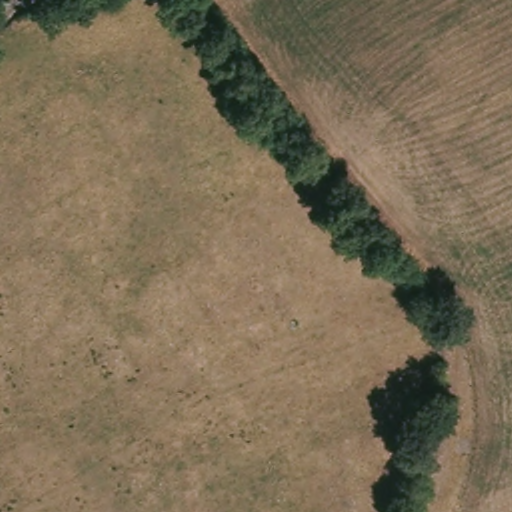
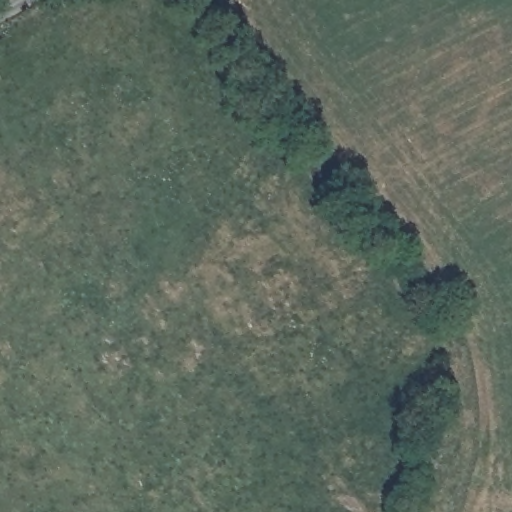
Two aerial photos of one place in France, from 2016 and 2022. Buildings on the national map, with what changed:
[]

